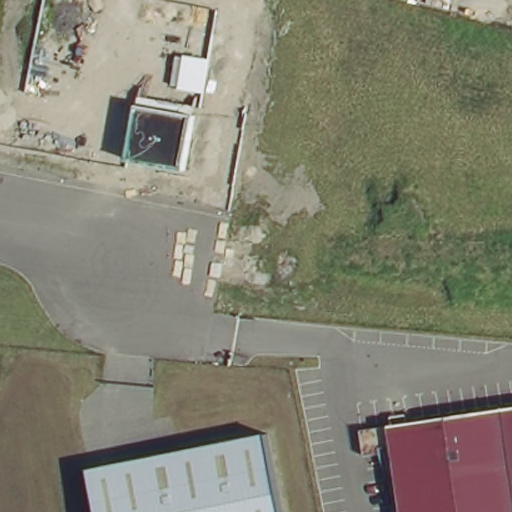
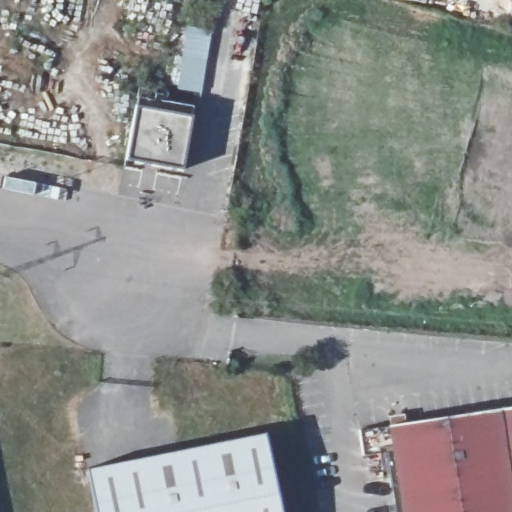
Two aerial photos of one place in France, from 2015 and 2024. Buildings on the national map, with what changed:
new [(175,55),(183,56),(187,26),(211,30),(202,91),(171,88),(175,55)]
unchanged [(144,90),(201,101),(186,165),(130,154),(144,90)]
unchanged [(512,405),(512,512),(398,512),(387,451),(363,455),(359,429),(512,405)]
unchanged [(89,470),(265,434),(280,512),(98,512),(89,470)]

